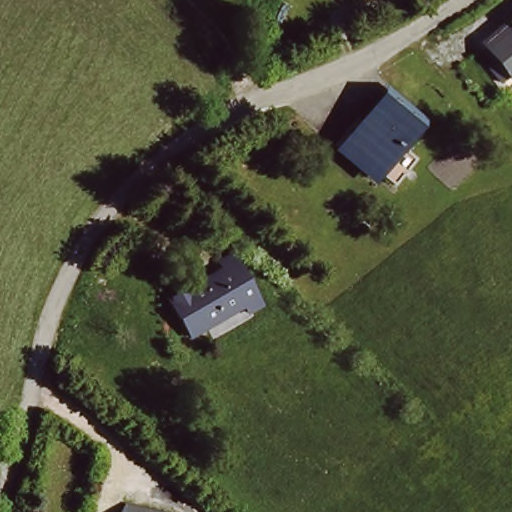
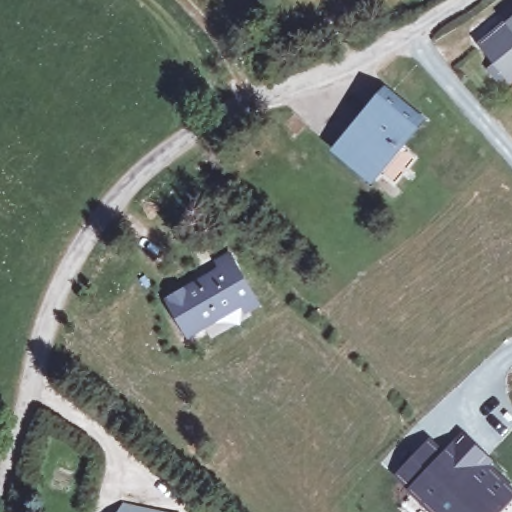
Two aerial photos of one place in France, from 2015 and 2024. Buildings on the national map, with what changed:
unchanged [(511,75),(509,72),(499,80),(487,66),(496,59),(482,42),(512,17),(512,74),(511,75)]
unchanged [(343,145),(348,139),(386,92),(420,121),(381,167),(376,172),(343,145)]
unchanged [(260,296),(246,303),(238,289),(219,301),(223,308),(188,328),(166,290),(201,270),(202,272),(222,261),(216,252),(230,244),(260,296)]
new [(499,512),(440,512),(417,490),(404,478),(433,447),(441,455),(464,432),(493,461),(486,470),(512,496),(512,499),(503,508),(499,512)]
unchanged [(125,502),(168,512),(167,512),(122,512),(125,502)]

